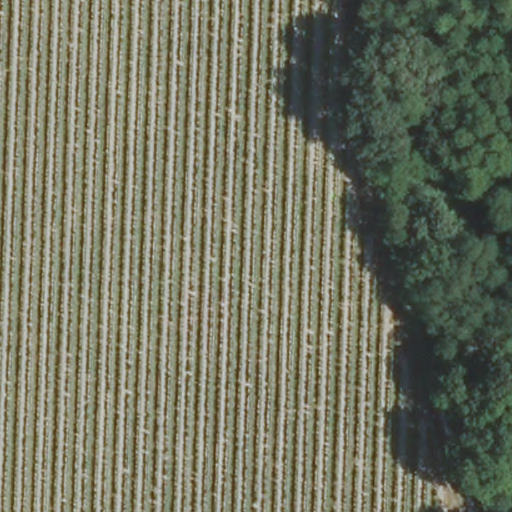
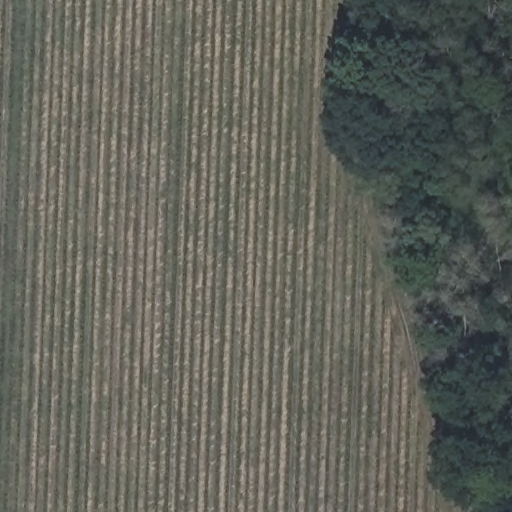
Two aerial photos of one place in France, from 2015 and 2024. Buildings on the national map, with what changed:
[]

